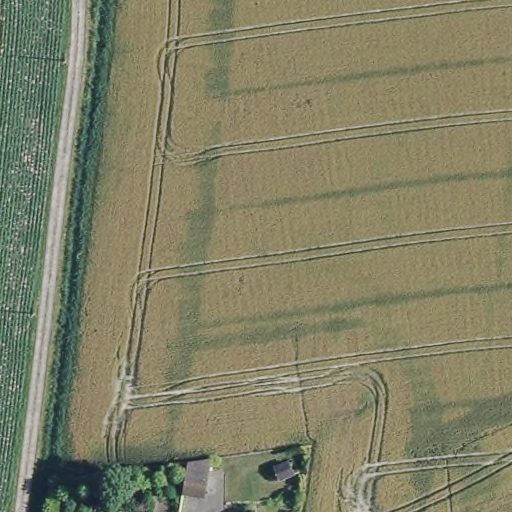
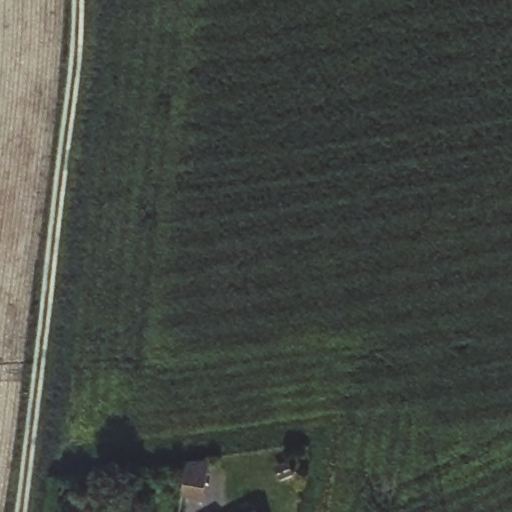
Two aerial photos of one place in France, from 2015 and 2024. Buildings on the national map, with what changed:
unchanged [(199,457),(193,494),(173,492),(173,483),(176,461),(199,457)]
unchanged [(256,512),(243,512),(253,507),(256,512)]

